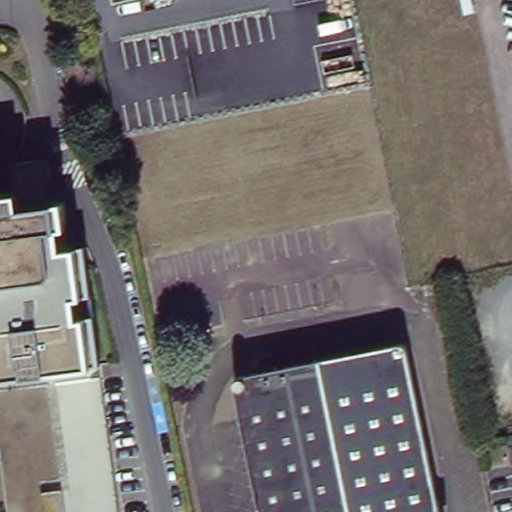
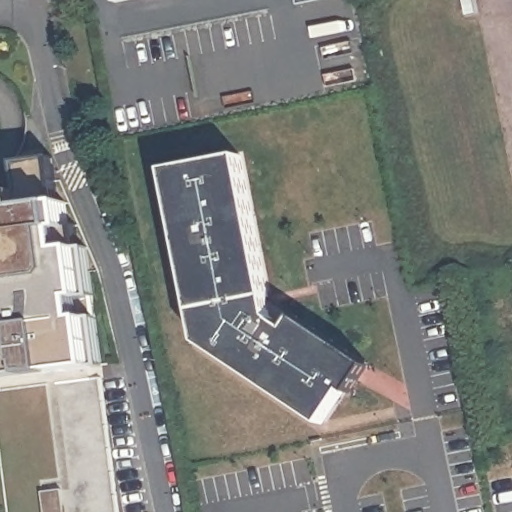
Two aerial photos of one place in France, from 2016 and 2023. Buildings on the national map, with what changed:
unchanged [(130,0),(116,3),(115,0),(130,0)]
unchanged [(295,0),(310,0),(296,3),(295,0)]
unchanged [(15,162),(51,157),(57,203),(64,202),(67,227),(75,226),(77,249),(85,248),(100,364),(0,378),(0,193),(18,191),(15,162)]
new [(265,298),(367,362),(347,392),(341,388),(320,423),(200,342),(162,170),(238,157),(265,298)]
demolished [(236,382),(238,376),(402,344),(405,344),(407,346),(408,351),(441,512),(261,512),(236,382)]
unchanged [(0,390),(100,376),(118,512),(8,512),(0,450),(0,390)]

